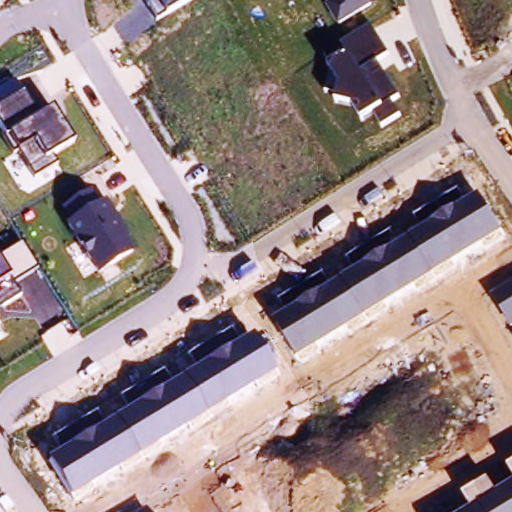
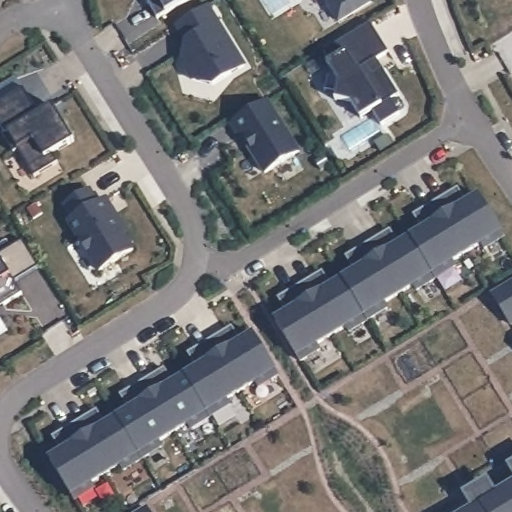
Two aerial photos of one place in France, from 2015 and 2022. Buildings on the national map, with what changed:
unchanged [(156,17),(146,0),(187,0),(156,17)]
unchanged [(372,2),(336,25),(324,6),(330,1),(330,0),(372,0),(372,2)]
new [(208,6),(245,66),(213,85),(192,81),(181,62),(183,56),(190,52),(185,46),(186,42),(176,26),(208,6)]
unchanged [(388,51),(377,59),(397,93),(391,96),(400,112),(381,123),(372,109),(360,116),(352,102),(335,96),(335,92),(326,89),(331,67),(323,53),(369,24),(388,51)]
unchanged [(11,153),(2,134),(6,132),(0,121),(0,86),(16,77),(36,114),(55,103),(75,139),(50,151),(58,162),(35,175),(18,150),(11,153)]
new [(267,101),(298,152),(264,174),(242,137),(240,139),(230,124),(267,101)]
unchanged [(94,186),(103,200),(107,198),(130,235),(126,237),(132,249),(99,268),(67,221),(70,219),(62,206),(94,186)]
unchanged [(283,310),(277,297),(290,289),(297,301),(311,291),(305,280),(320,271),(327,282),(350,268),(344,257),(358,249),(364,259),(378,250),(372,240),(390,230),(395,240),(420,227),(412,214),(458,187),(465,201),(480,192),(505,237),(486,249),(483,242),(451,262),(455,268),(415,292),(411,287),(382,303),(387,311),(351,332),(347,327),(320,342),(321,350),(300,361),(275,317),(283,310)]
unchanged [(39,267),(14,280),(21,293),(0,305),(0,254),(22,241),(39,267)]
unchanged [(512,279),(512,325),(511,325),(493,290),(512,279)]
unchanged [(60,448),(52,436),(65,428),(72,438),(87,430),(82,420),(97,411),(102,422),(126,407),(121,395),(136,385),(141,397),(155,387),(149,377),(165,367),(171,379),(192,363),(187,355),(205,344),(210,353),(221,347),(216,335),(232,325),(238,337),(255,330),(280,376),(260,388),(255,383),(228,400),(232,407),(191,431),(188,425),(158,442),(163,450),(125,472),(120,467),(90,485),(93,491),(75,502),(50,456),(60,448)]
unchanged [(506,462),(512,460),(512,473),(506,462)]
unchanged [(460,494),(487,478),(495,491),(512,480),(512,512),(462,512),(470,507),(460,494)]
unchanged [(153,512),(135,512),(148,504),(153,512)]

